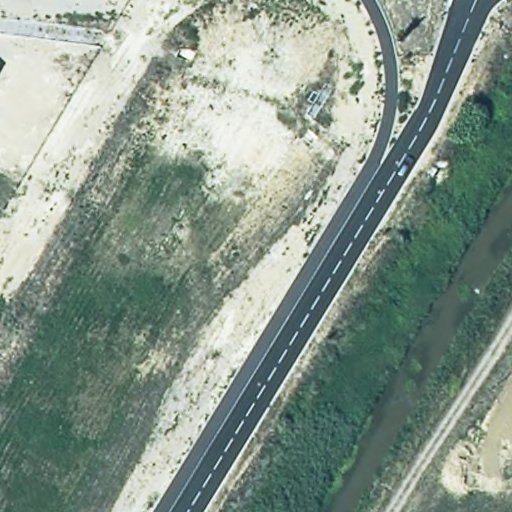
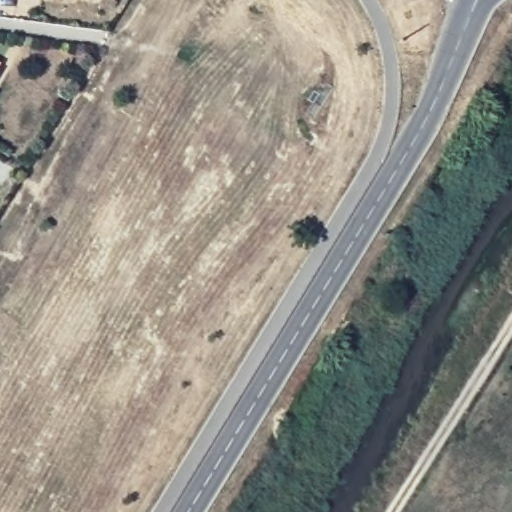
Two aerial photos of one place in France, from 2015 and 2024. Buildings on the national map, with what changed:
[]

